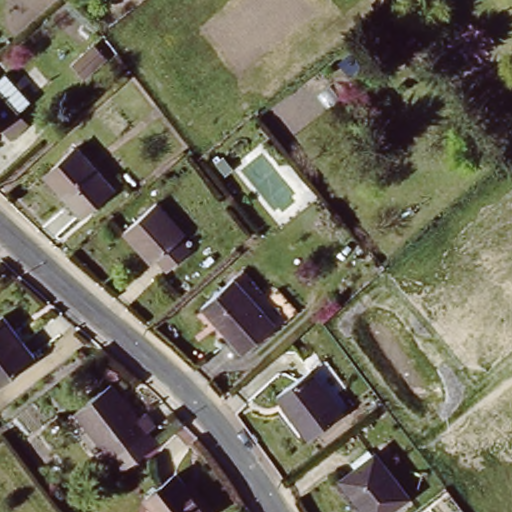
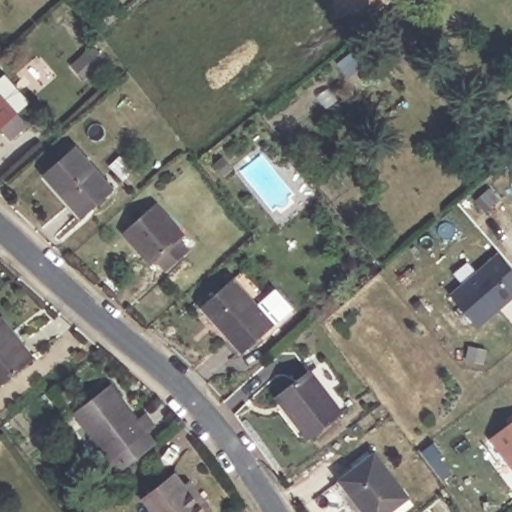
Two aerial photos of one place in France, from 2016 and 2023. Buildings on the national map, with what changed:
unchanged [(407,21),(420,38),(399,54),(386,37),(407,21)]
new [(94,46),(107,59),(87,78),(74,65),(94,46)]
unchanged [(7,73),(41,114),(25,128),(16,118),(0,130),(0,78),(7,73)]
unchanged [(82,148),(111,182),(79,209),(51,175),(82,148)]
unchanged [(189,230),(185,234),(197,247),(174,267),(163,255),(158,259),(132,232),(164,202),(189,230)]
new [(512,265),(512,299),(480,327),(452,294),(501,252),(512,265)]
unchanged [(240,278),(263,304),(274,294),(292,315),(272,333),(269,329),(237,357),(198,314),(240,278)]
unchanged [(32,359),(4,382),(0,377),(0,319),(32,359)]
unchanged [(316,370),(350,414),(317,439),(283,395),(316,370)]
unchanged [(143,419),(153,412),(162,424),(118,458),(82,411),(116,384),(143,419)]
new [(491,437),(512,421),(512,465),(491,437)]
unchanged [(381,456),(413,498),(394,512),(368,512),(346,482),(381,456)]
unchanged [(216,512),(155,512),(145,499),(184,467),(218,511),(216,512)]

